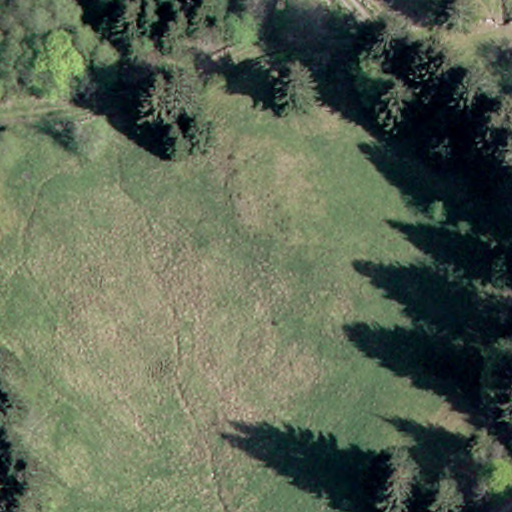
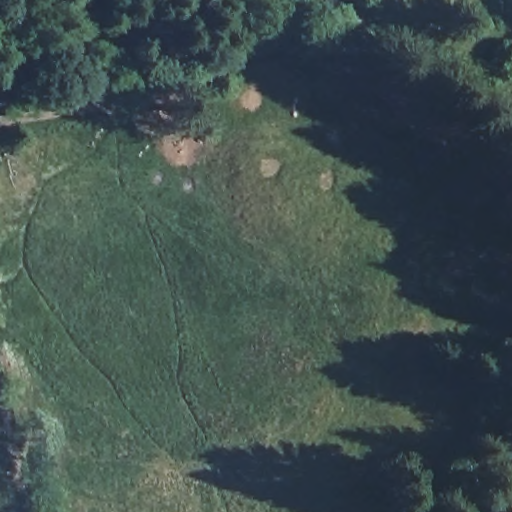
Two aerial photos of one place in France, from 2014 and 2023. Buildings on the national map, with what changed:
[]

